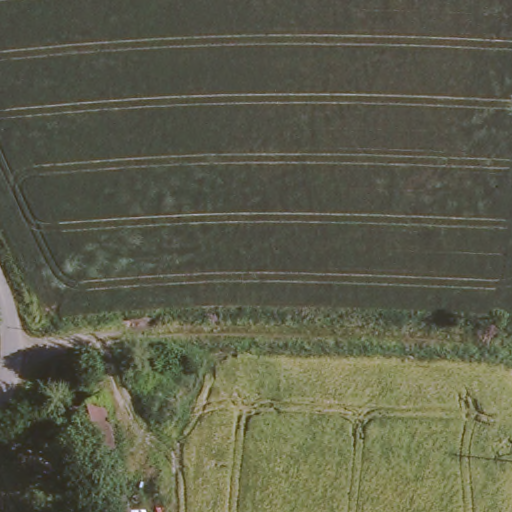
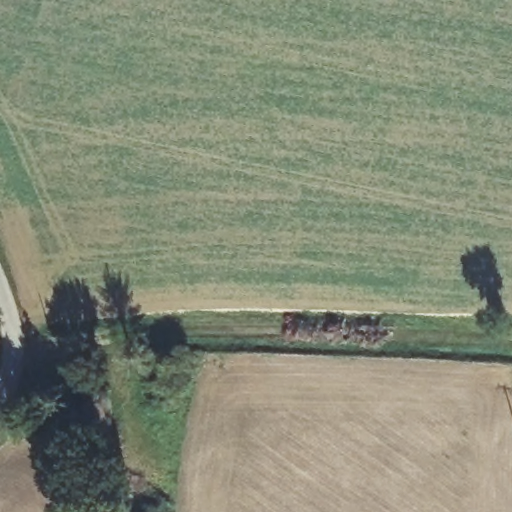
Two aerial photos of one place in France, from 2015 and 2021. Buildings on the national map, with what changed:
unchanged [(63,426),(60,412),(89,406),(92,419),(118,512),(85,512),(63,426)]

